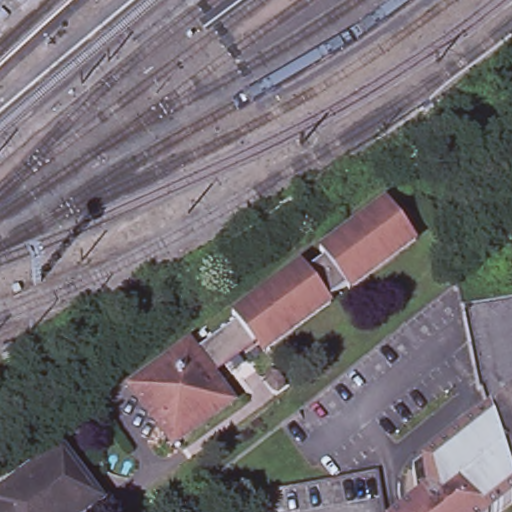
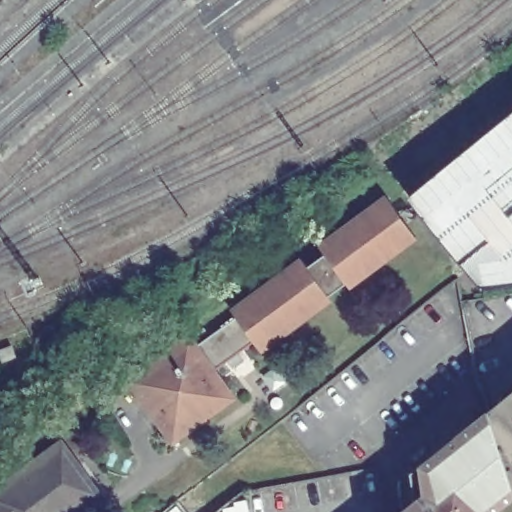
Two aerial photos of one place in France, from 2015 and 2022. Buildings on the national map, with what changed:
new [(410,200),(512,117),(512,288),(484,291),(410,200)]
unchanged [(307,263),(313,270),(331,258),(326,251),(394,204),(423,245),(353,292),(351,288),(333,301),(335,304),(265,351),(258,340),(254,342),(239,319),(234,312),(307,263)]
unchanged [(479,390),(478,386),(475,387),(472,368),(459,305),(512,297),(512,399),(488,418),(479,390)]
unchanged [(239,319),(254,342),(256,344),(215,371),(198,346),(239,319)]
unchanged [(215,371),(233,398),(171,441),(129,379),(191,337),(198,346),(215,371)]
unchanged [(512,494),(488,418),(512,399),(512,494)]
unchanged [(512,496),(493,512),(407,512),(414,507),(409,478),(488,418),(512,494),(512,496)]
unchanged [(63,445),(103,501),(88,512),(0,512),(0,490),(63,445)]
unchanged [(254,512),(225,512),(225,511),(254,508),(254,512)]

